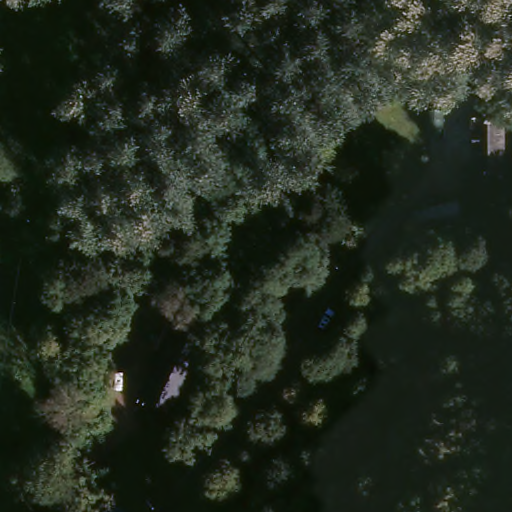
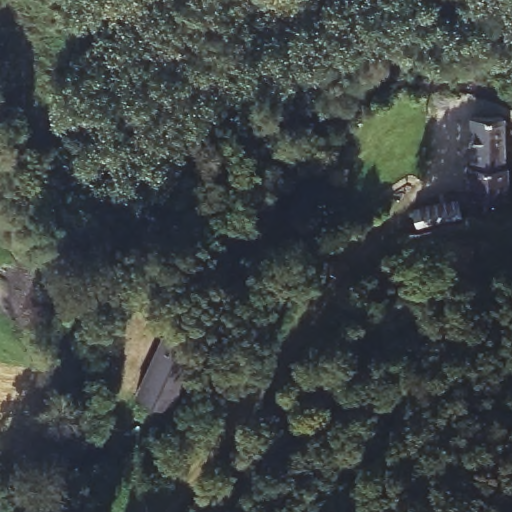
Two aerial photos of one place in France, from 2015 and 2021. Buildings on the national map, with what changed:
unchanged [(500,121),(501,204),(463,206),(462,177),(469,177),(473,121),(500,121)]

